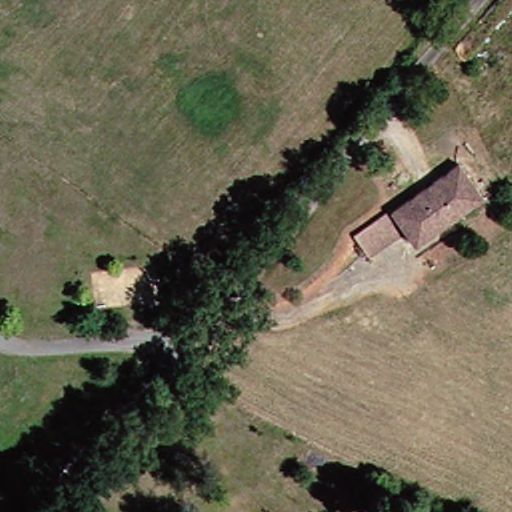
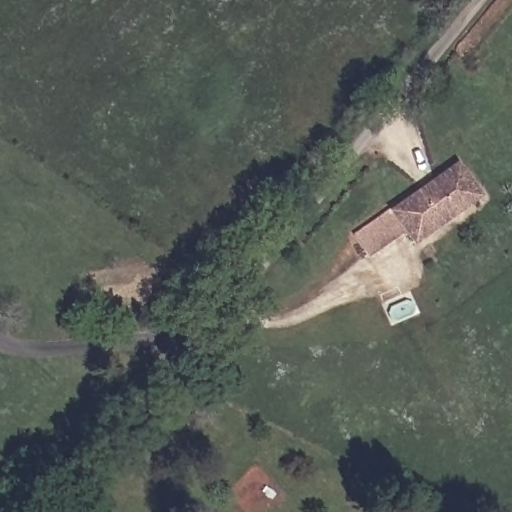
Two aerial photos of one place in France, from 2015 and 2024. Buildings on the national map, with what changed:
unchanged [(413,233),(376,259),(359,235),(396,209),(398,211),(466,161),(482,184),(492,197),(468,214),(423,246),(413,233)]
unchanged [(448,505),(459,512),(443,512),(448,505)]

